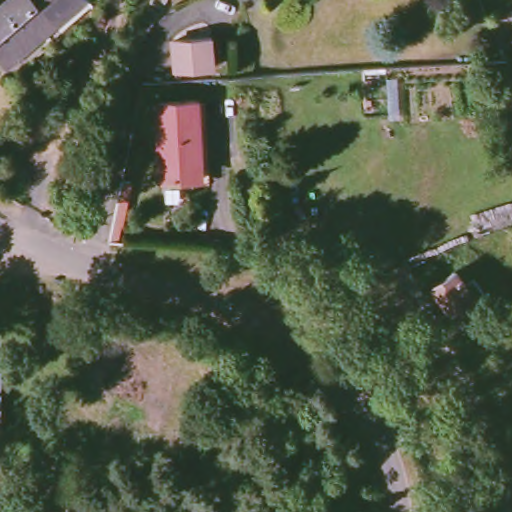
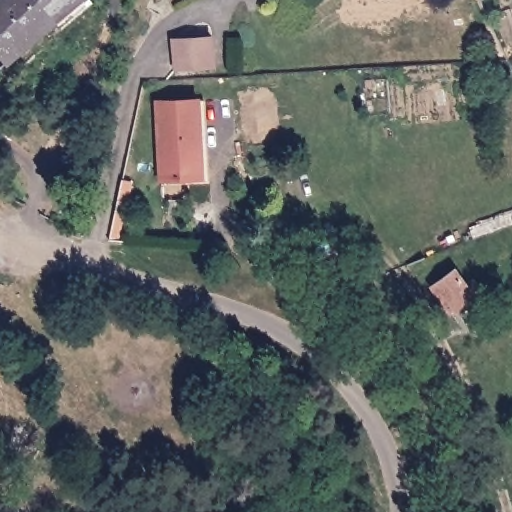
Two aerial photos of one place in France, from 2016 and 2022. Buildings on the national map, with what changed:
unchanged [(3,0),(31,0),(37,6),(44,0),(83,0),(6,68),(0,60),(0,3),(3,0)]
unchanged [(175,45),(213,43),(215,71),(176,74),(175,45)]
unchanged [(160,101),(202,100),(203,178),(163,179),(160,101)]
unchanged [(432,286),(451,272),(456,269),(466,284),(475,279),(487,298),(456,319),(432,286)]

